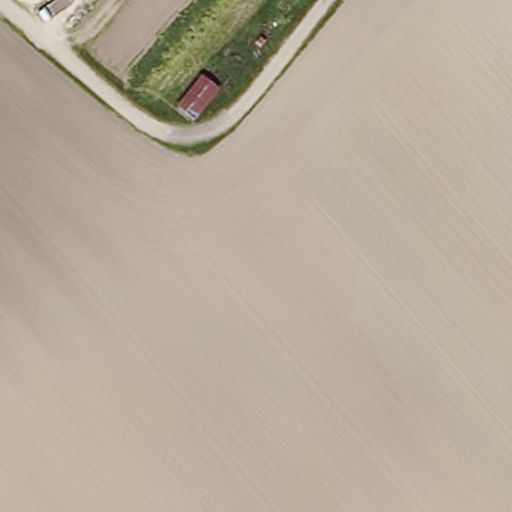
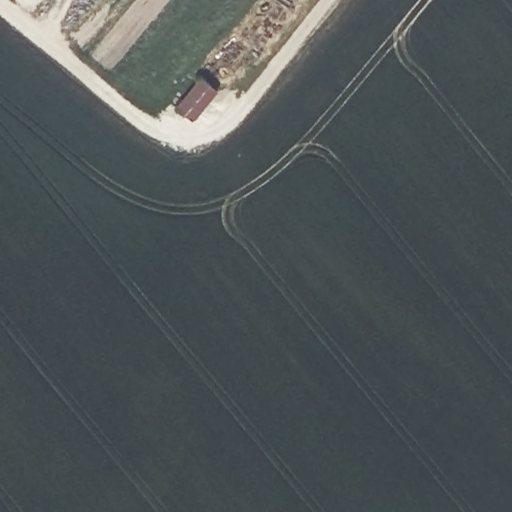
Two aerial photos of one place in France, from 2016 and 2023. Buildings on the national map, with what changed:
unchanged [(223,85),(194,119),(178,103),(203,70),(223,85)]

